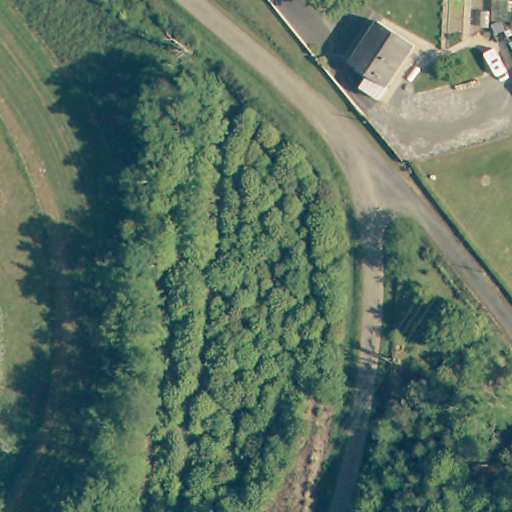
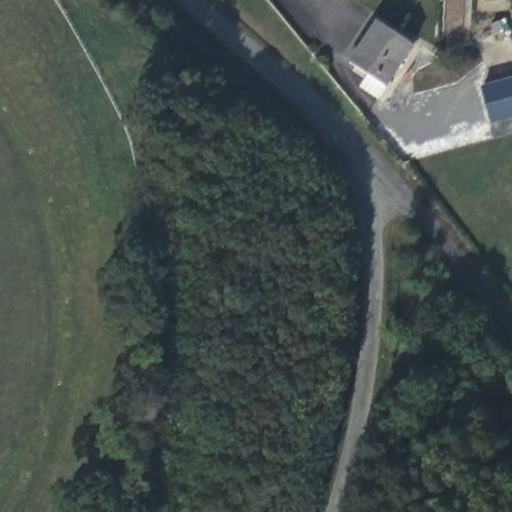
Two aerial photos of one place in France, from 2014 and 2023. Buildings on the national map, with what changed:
unchanged [(354,82),(365,68),(349,58),(379,20),(412,40),(373,94),(354,82)]
demolished [(512,20),(512,38),(511,39),(504,24),(512,20)]
new [(512,40),(512,48),(509,41),(512,40)]
new [(492,124),(482,85),(512,78),(512,118),(492,124)]

